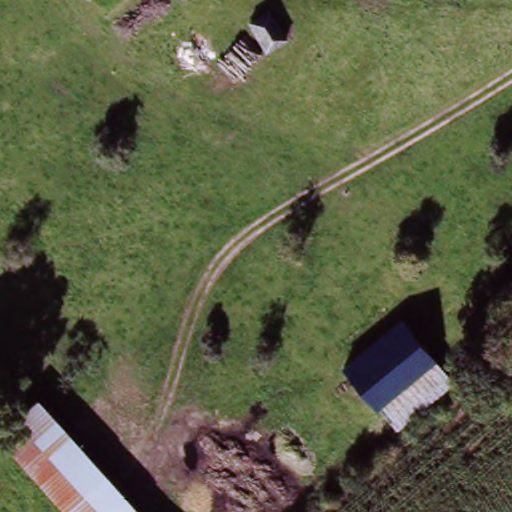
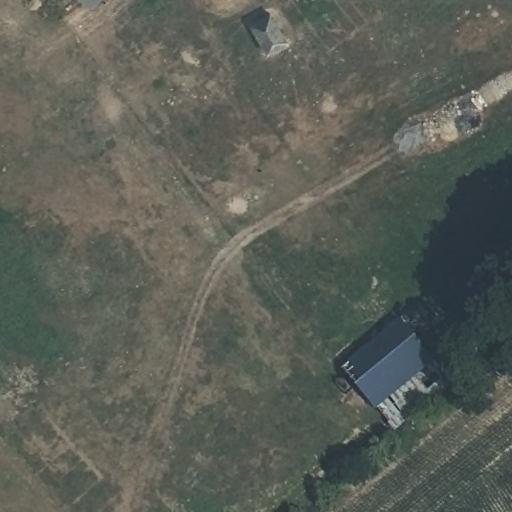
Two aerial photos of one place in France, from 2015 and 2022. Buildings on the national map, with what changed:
unchanged [(95,0),(90,4),(87,0),(95,0)]
unchanged [(249,23),(265,9),(286,43),(266,55),(249,23)]
unchanged [(333,369),(407,316),(441,361),(367,412),(333,369)]
demolished [(0,448),(0,428),(38,393),(140,512),(60,512),(0,448)]

